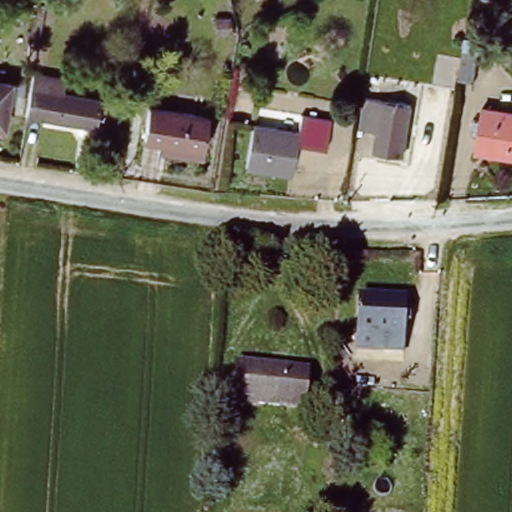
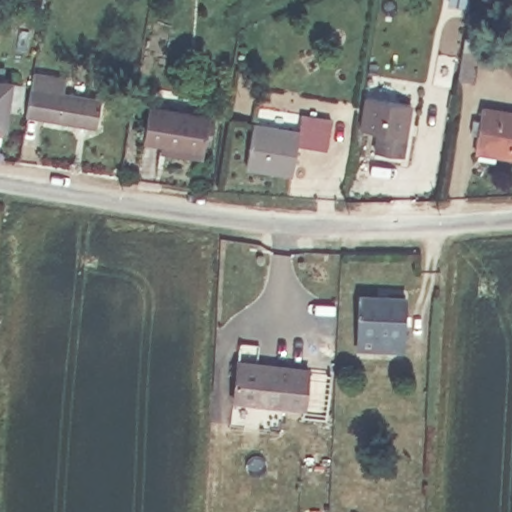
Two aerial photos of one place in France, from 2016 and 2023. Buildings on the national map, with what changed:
unchanged [(468,46),(482,48),(477,76),(463,74),(468,46)]
unchanged [(67,89),(99,96),(92,129),(30,115),(26,114),(33,73),(39,74),(69,79),(67,89)]
unchanged [(7,132),(0,131),(0,83),(15,86),(7,132)]
unchanged [(410,158),(380,154),(383,132),(368,129),(373,98),(418,104),(410,158)]
unchanged [(150,105),(208,117),(202,149),(143,137),(150,105)]
unchanged [(475,152),(482,109),(512,114),(512,158),(475,152)]
unchanged [(300,112),(332,117),(327,149),(294,143),(289,173),(242,164),(249,121),(297,130),(297,124),(300,112)]
unchanged [(401,351),(383,349),(383,333),(356,332),(358,295),(404,298),(401,351)]
unchanged [(309,366),(307,399),(236,394),(237,362),(309,366)]

